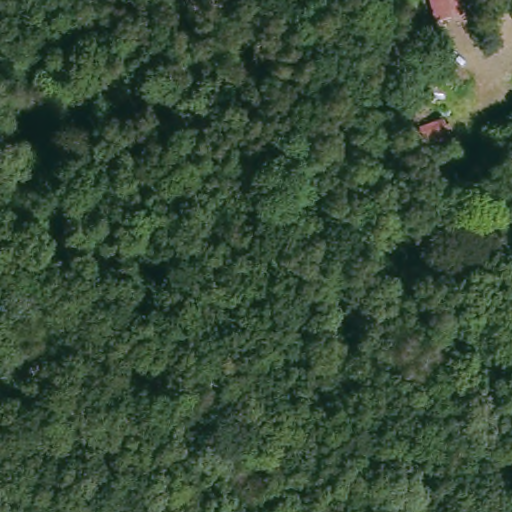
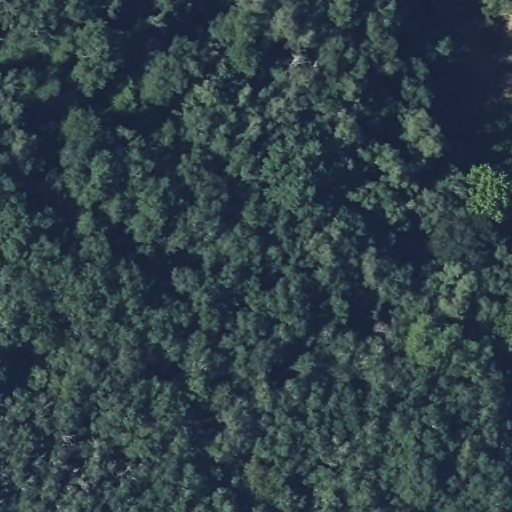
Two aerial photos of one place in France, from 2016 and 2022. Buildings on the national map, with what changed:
unchanged [(468,0),(472,16),(442,22),(437,0),(468,0)]
unchanged [(444,140),(401,149),(396,125),(439,116),(444,140)]

